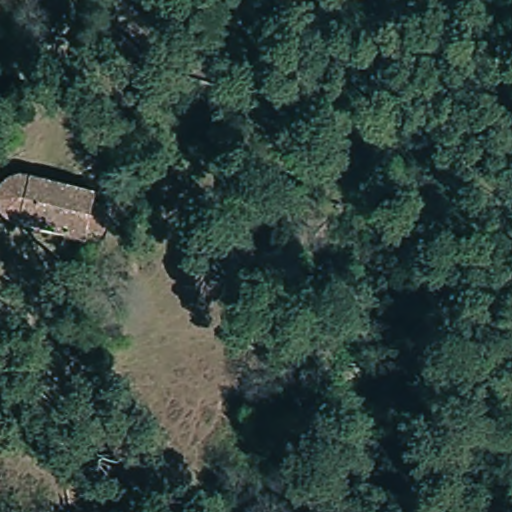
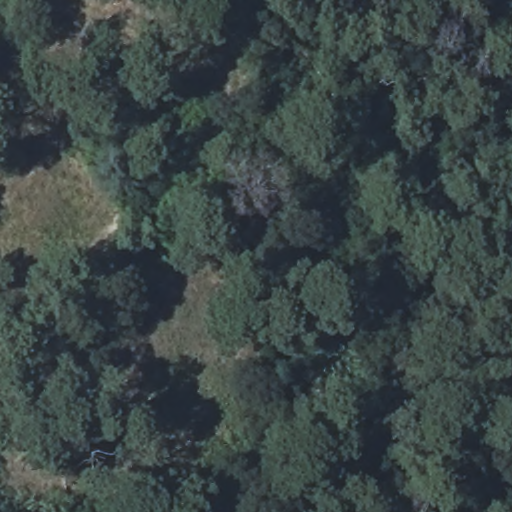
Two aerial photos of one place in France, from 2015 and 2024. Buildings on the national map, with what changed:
unchanged [(192,45),(243,59),(235,89),(184,75),(192,45)]
demolished [(96,202),(110,206),(102,232),(88,229),(84,239),(19,220),(5,210),(3,191),(7,185),(12,179),(20,175),(27,175),(29,175),(98,194),(96,202)]

